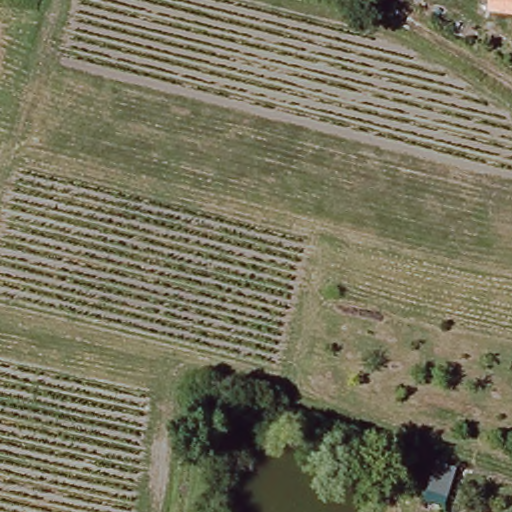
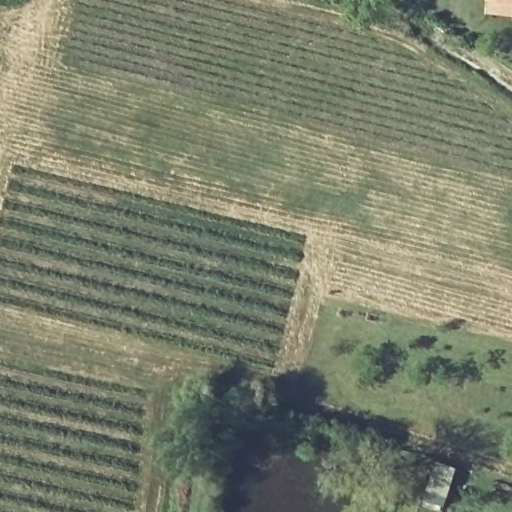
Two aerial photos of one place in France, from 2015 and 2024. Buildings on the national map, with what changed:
unchanged [(483,8),(484,0),(512,0),(512,12),(506,11),(483,8)]

